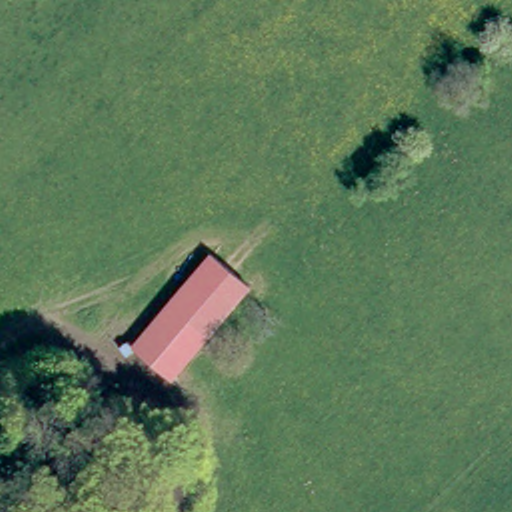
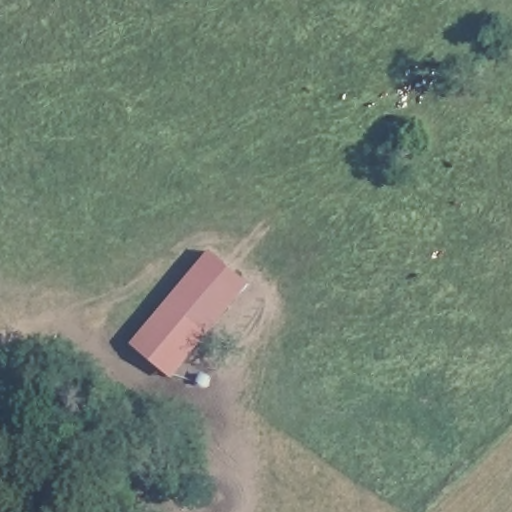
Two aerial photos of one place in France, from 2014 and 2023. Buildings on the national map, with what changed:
unchanged [(248,283),(171,375),(131,343),(208,251),(248,283)]

